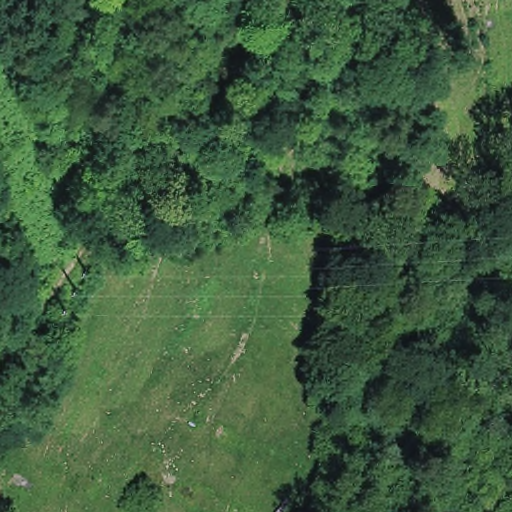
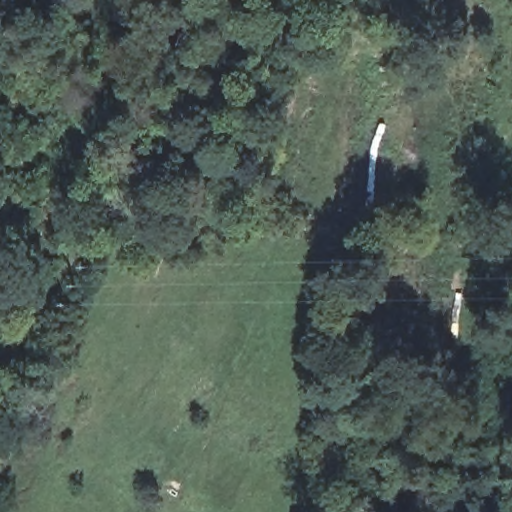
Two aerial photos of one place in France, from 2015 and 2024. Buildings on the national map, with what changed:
[]

